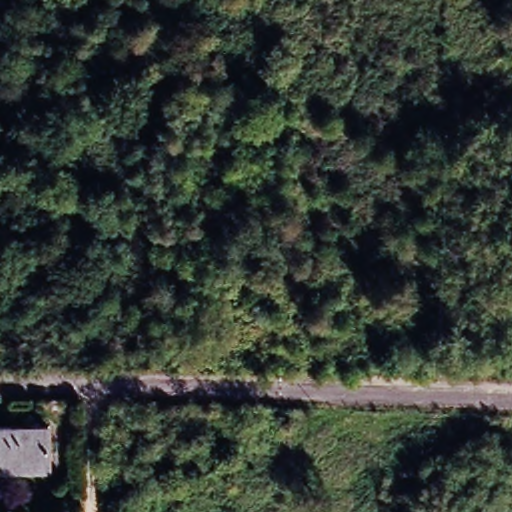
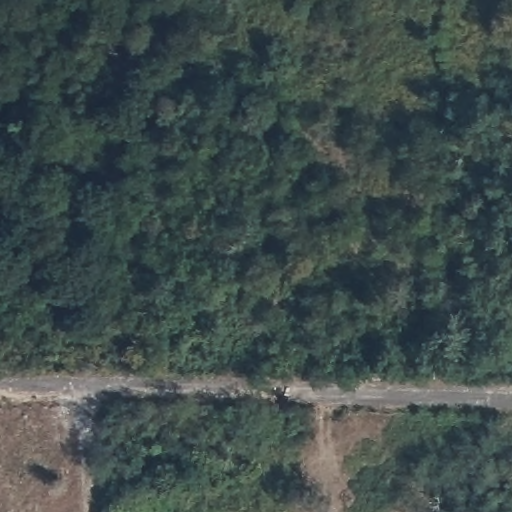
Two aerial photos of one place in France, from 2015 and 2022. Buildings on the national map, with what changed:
demolished [(47,424),(48,466),(0,467),(0,425),(47,424)]
unchanged [(29,512),(9,512),(9,502),(28,501),(29,512)]

